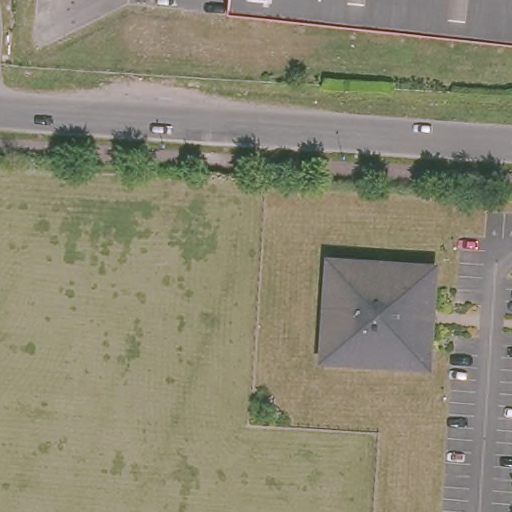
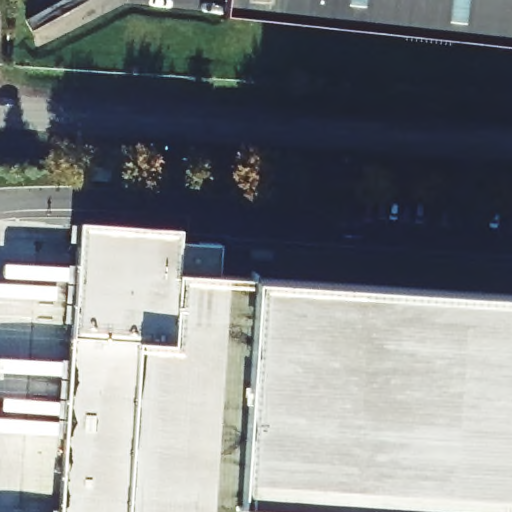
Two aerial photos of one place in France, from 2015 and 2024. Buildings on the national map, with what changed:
unchanged [(224,0),(512,0),(512,37),(224,1),(224,0)]
new [(72,333),(80,220),(182,227),(180,241),(218,244),(217,274),(253,277),(512,294),(512,512),(60,512),(72,333)]
demolished [(328,259),(429,267),(420,365),(319,356),(328,259)]

